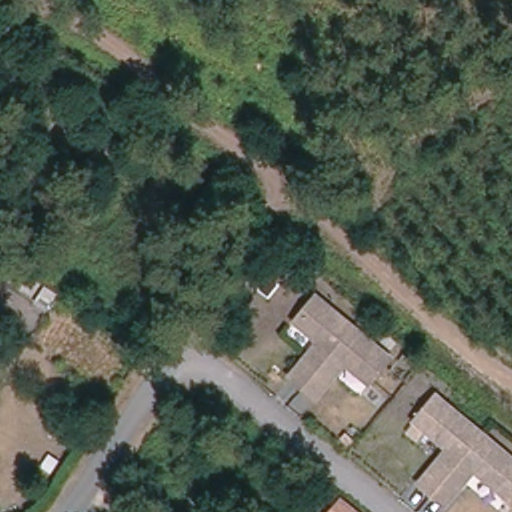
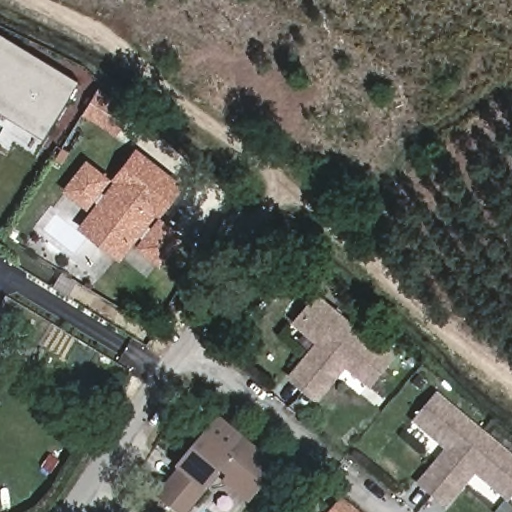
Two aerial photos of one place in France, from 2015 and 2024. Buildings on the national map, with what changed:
new [(46,129),(0,100),(0,52),(4,46),(71,88),(46,129)]
new [(116,135),(98,121),(86,113),(100,92),(112,101),(131,115),(116,135)]
new [(185,237),(160,267),(135,248),(142,238),(139,236),(120,261),(77,227),(95,204),(93,202),(87,209),(61,190),(86,160),(110,179),(135,147),(184,186),(159,217),(185,237)]
unchanged [(366,383),(345,367),(316,400),(286,375),(315,341),(290,320),(316,290),(394,353),(366,383)]
unchanged [(508,496),(478,472),(448,507),(418,483),(447,450),(411,419),(433,392),(512,456),(512,492),(508,496)]
new [(178,470),(174,466),(218,418),(241,437),(278,467),(248,503),(221,482),(225,478),(220,472),(204,490),(188,512),(174,512),(155,496),(178,470)]
unchanged [(332,512),(341,499),(343,498),(360,512),(332,512)]

